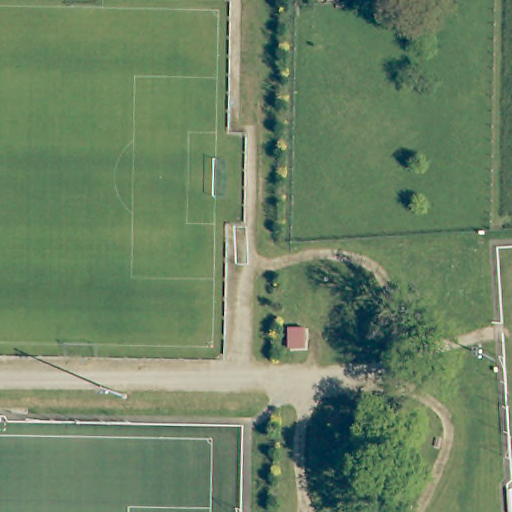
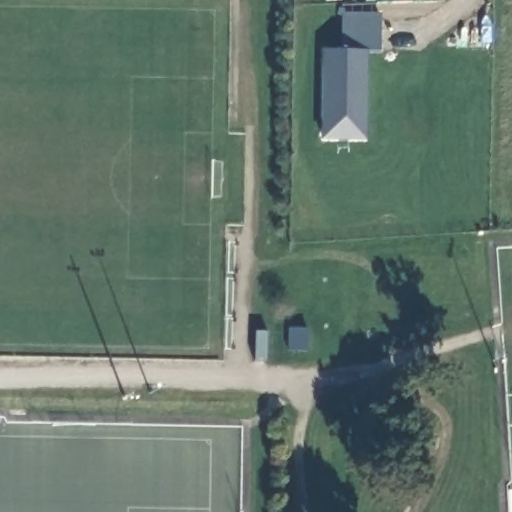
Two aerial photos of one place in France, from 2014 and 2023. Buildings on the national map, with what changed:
new [(381,49),(369,49),(368,139),(322,137),(323,49),(345,48),(342,11),(382,13),(381,49)]

